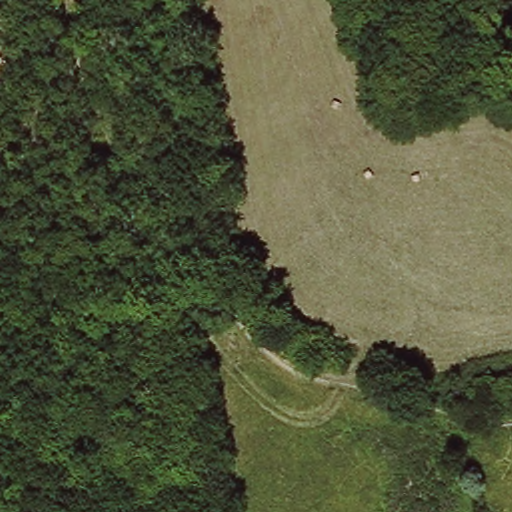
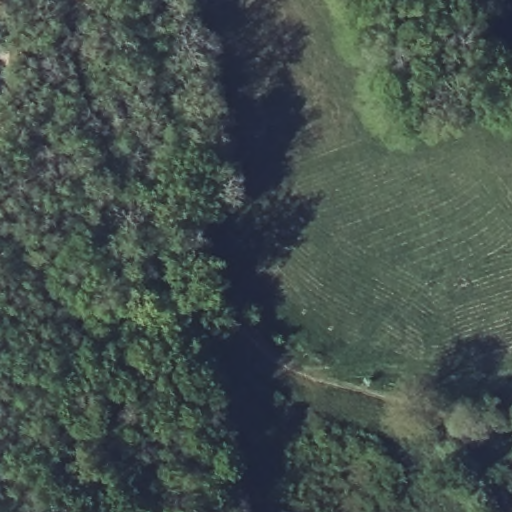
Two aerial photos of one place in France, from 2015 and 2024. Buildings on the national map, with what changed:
[]

